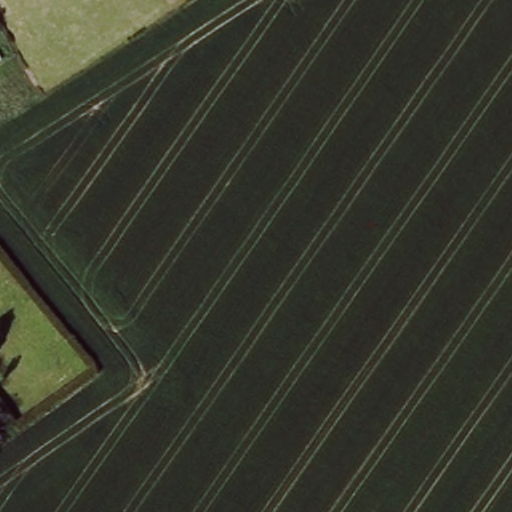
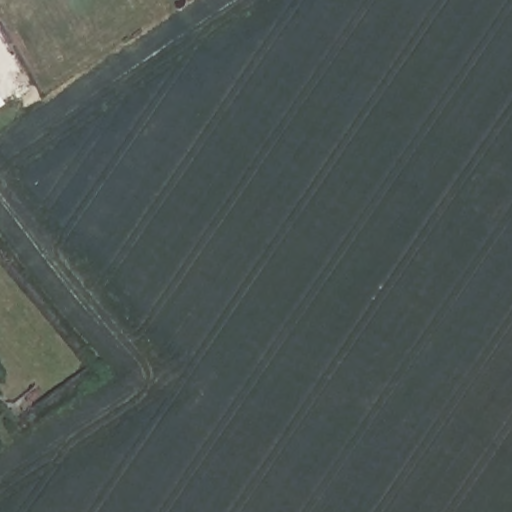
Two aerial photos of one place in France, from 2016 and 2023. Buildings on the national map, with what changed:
unchanged [(5,59),(0,61),(0,51),(5,59)]

